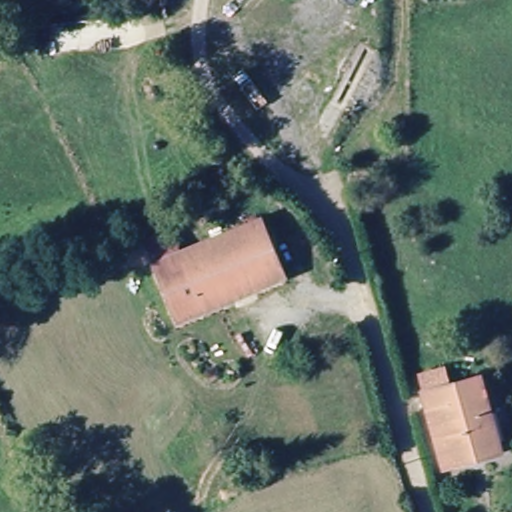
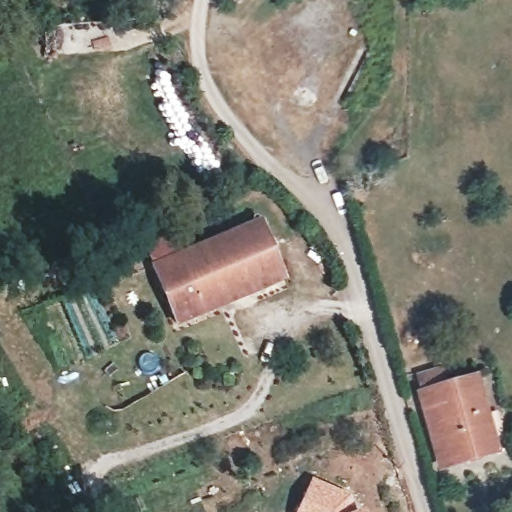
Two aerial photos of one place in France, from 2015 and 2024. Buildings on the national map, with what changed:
unchanged [(283,280),(202,317),(180,328),(151,267),(255,219),(283,280)]
unchanged [(478,376),(503,448),(443,466),(419,394),(478,376)]
new [(310,475),(349,493),(346,497),(349,500),(349,501),(350,503),(343,509),(345,512),(295,512),(310,475)]
new [(363,509),(363,512),(353,512),(363,509)]

